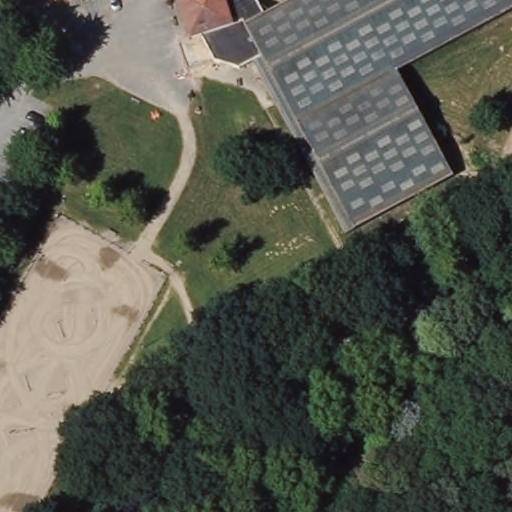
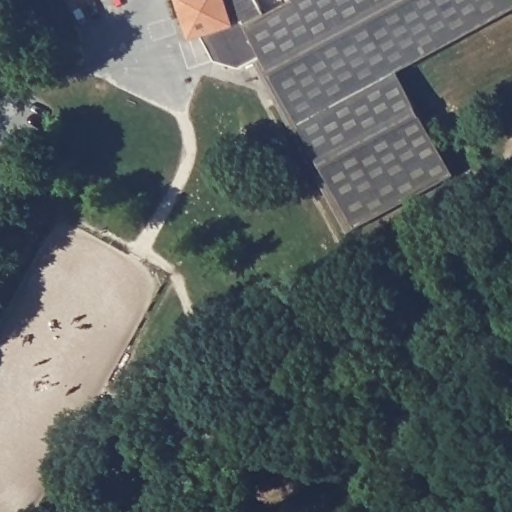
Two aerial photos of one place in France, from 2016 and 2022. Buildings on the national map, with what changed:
unchanged [(405,73),(458,174),(352,233),(259,61),(246,69),(219,60),(206,35),(194,39),(182,0),(263,0),(270,14),(297,0),(512,0),(512,13),(405,73)]

